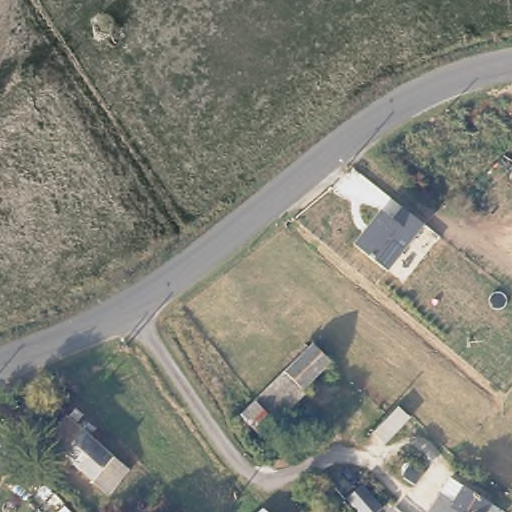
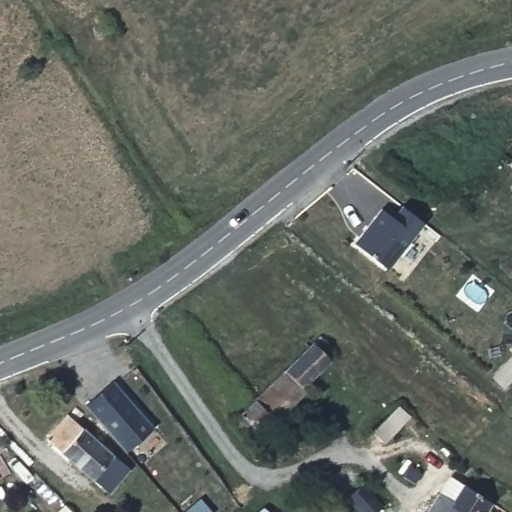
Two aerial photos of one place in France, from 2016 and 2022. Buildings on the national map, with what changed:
unchanged [(389,270),(355,244),(382,210),(394,219),(404,207),(426,224),(389,270)]
unchanged [(261,427),(258,430),(253,424),(244,431),(236,422),(243,414),(241,412),(257,397),(310,346),(305,341),(310,336),(315,341),(321,335),(326,341),(321,347),(330,357),(303,383),(306,387),(276,416),(263,429),(261,427)]
new [(126,452),(86,405),(115,382),(154,427),(126,452)]
unchanged [(411,415),(385,440),(372,428),(398,402),(411,415)]
unchanged [(131,470),(111,495),(48,443),(69,418),(131,470)]
unchanged [(421,476),(414,486),(404,479),(410,469),(421,476)]
unchanged [(489,505),(485,512),(429,512),(451,478),(489,505)]
unchanged [(383,512),(360,512),(351,502),(367,489),(384,511),(383,512)]
unchanged [(167,512),(155,512),(162,506),(167,512)]
demolished [(338,512),(343,507),(348,512),(338,512)]

